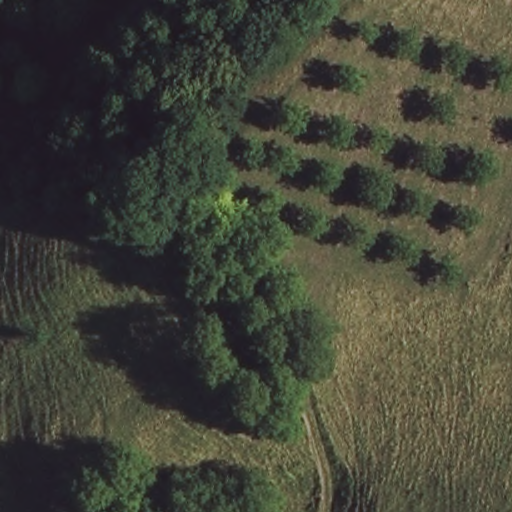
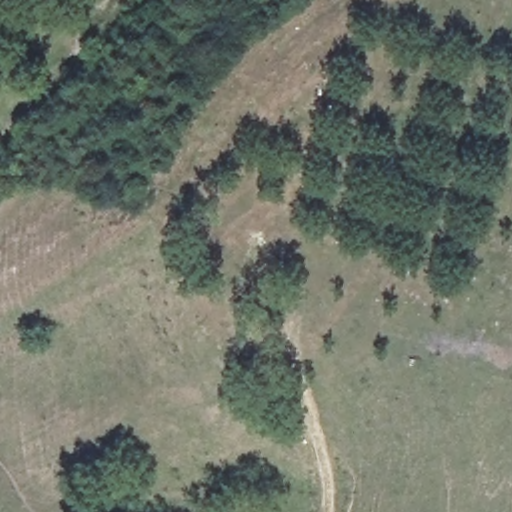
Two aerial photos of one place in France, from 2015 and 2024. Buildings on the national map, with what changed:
[]

